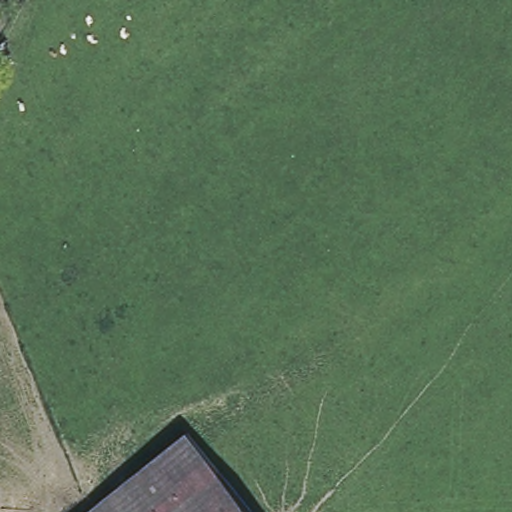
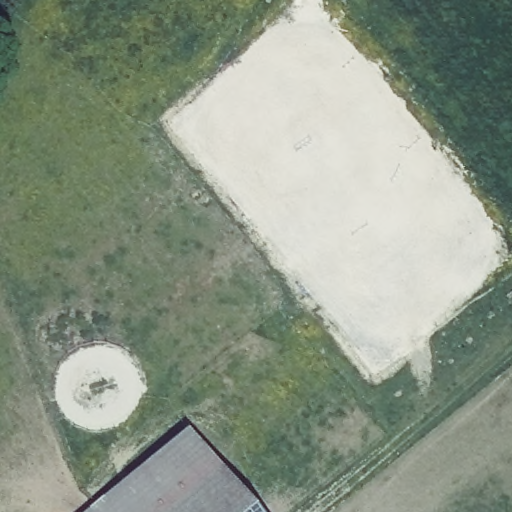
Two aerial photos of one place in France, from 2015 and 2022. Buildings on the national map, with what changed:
unchanged [(197,430),(257,512),(87,512),(197,430)]

